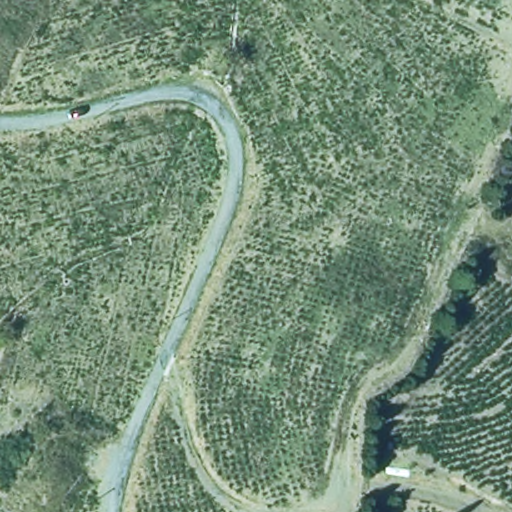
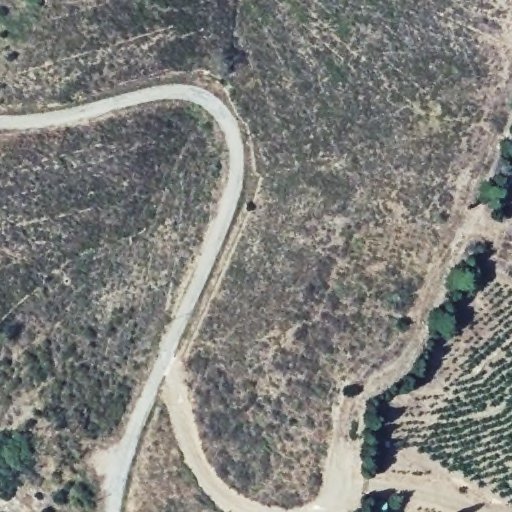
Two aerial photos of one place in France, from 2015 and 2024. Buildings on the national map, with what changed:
unchanged [(499,206),(489,242),(470,236),(480,201),(499,206)]

